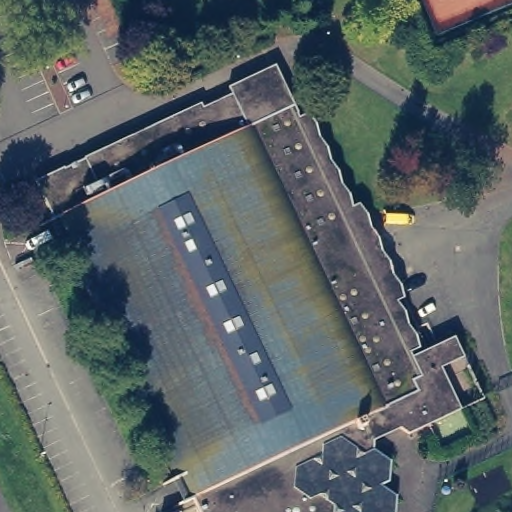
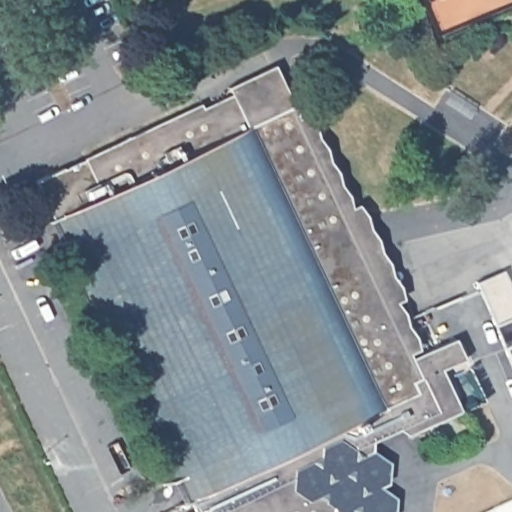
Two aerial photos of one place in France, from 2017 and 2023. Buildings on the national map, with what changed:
unchanged [(466,399),(425,419),(414,413),(390,425),(389,434),(406,446),(402,473),(410,480),(407,499),(389,509),(383,505),(382,512),(347,512),(347,511),(346,512),(273,512),(268,509),(263,512),(215,512),(202,484),(198,485),(66,203),(118,178),(102,142),(216,87),(217,91),(248,76),(245,70),(292,49),(430,341),(470,322),(478,342),(455,353),(472,390),(472,391),(466,399)]
new [(475,280),(501,268),(507,282),(512,280),(512,313),(492,322),(475,280)]
new [(512,341),(512,369),(502,345),(512,341)]

